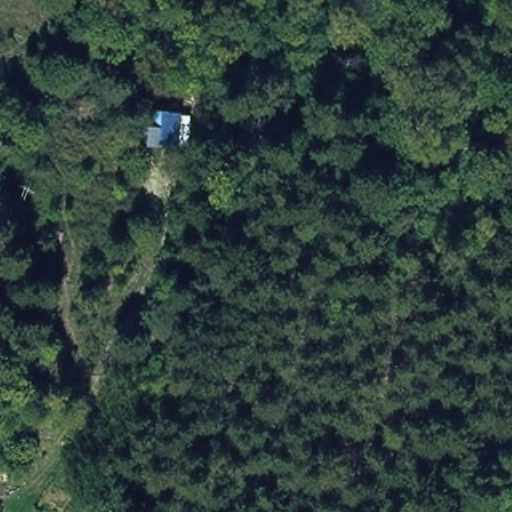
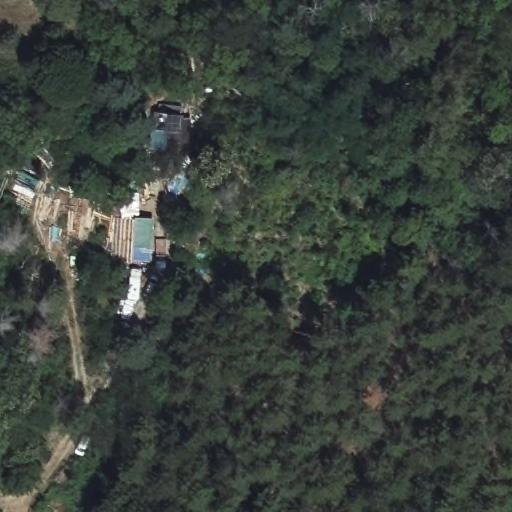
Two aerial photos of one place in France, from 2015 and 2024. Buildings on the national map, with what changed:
unchanged [(182,116),(180,151),(153,149),(157,113),(182,116)]

